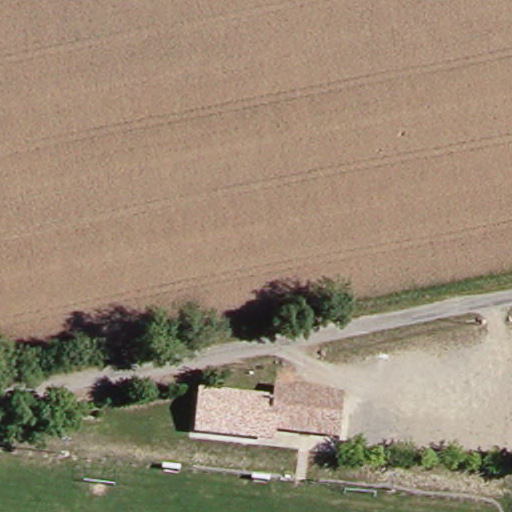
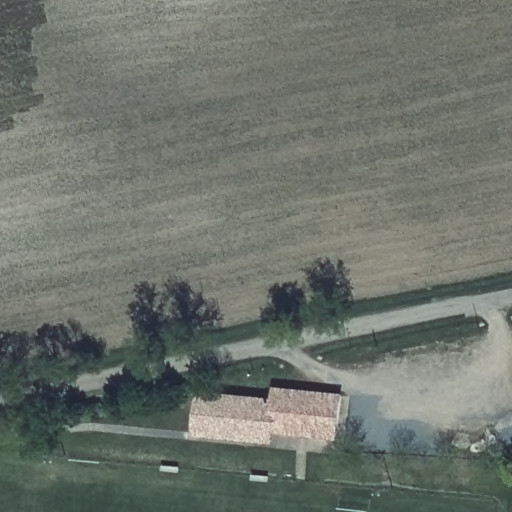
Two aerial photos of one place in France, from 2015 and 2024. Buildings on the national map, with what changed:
unchanged [(346,390),(342,446),(193,438),(197,397),(272,397),(276,386),(346,390)]

